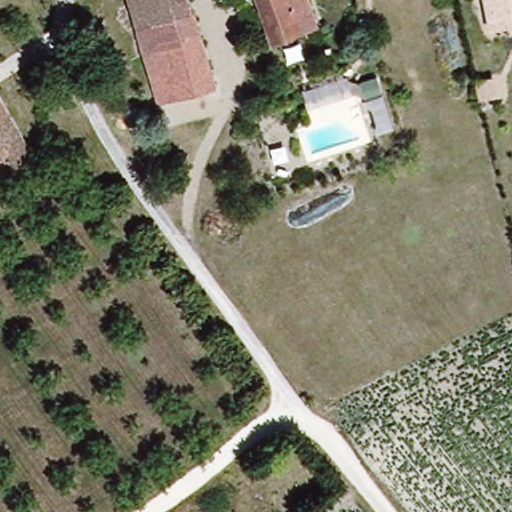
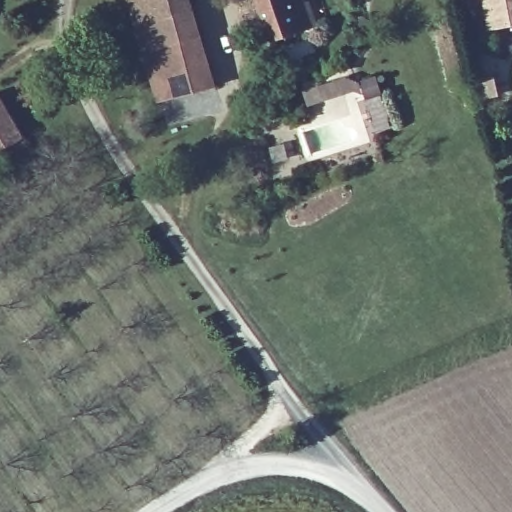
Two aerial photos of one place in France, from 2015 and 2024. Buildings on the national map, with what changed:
unchanged [(160,111),(128,0),(187,0),(214,95),(160,111)]
unchanged [(313,24),(270,39),(257,0),(305,0),(313,24)]
unchanged [(486,28),(481,0),(512,0),(512,23),(486,28)]
unchanged [(0,170),(0,98),(34,147),(0,170)]

